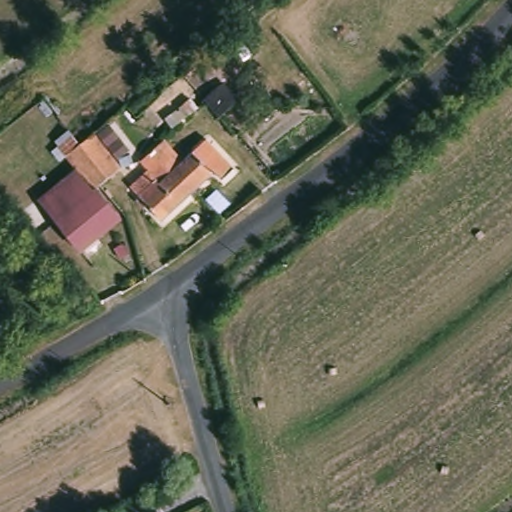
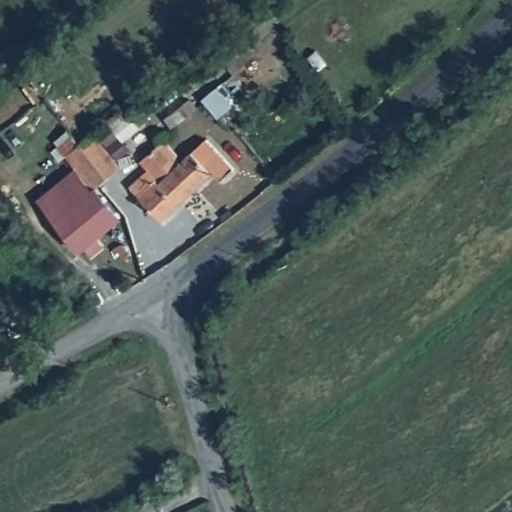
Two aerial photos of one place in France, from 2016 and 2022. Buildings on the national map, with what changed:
unchanged [(194,109),(172,127),(156,110),(169,99),(178,108),(188,100),(194,109)]
unchanged [(119,169),(96,189),(120,220),(81,252),(39,201),(76,171),(93,191),(94,190),(78,168),(74,171),(65,159),(64,159),(59,164),(50,154),(73,137),(80,146),(93,136),(119,169)]
unchanged [(234,169),(222,181),(215,174),(162,222),(139,196),(153,182),(154,181),(154,180),(152,179),(150,180),(137,166),(164,142),(177,155),(175,158),(180,164),(207,141),(234,169)]
unchanged [(133,165),(122,168),(119,160),(129,157),(133,165)]

